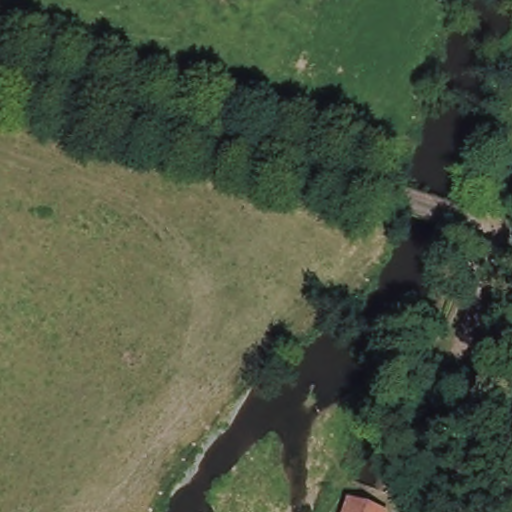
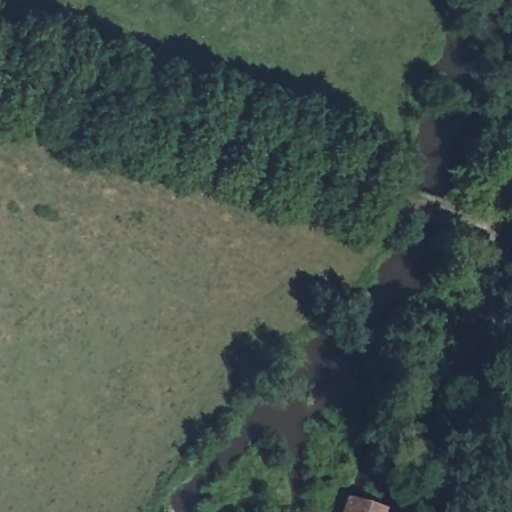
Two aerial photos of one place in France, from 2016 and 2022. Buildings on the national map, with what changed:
unchanged [(384,506),(382,512),(341,512),(347,495),(384,506)]

